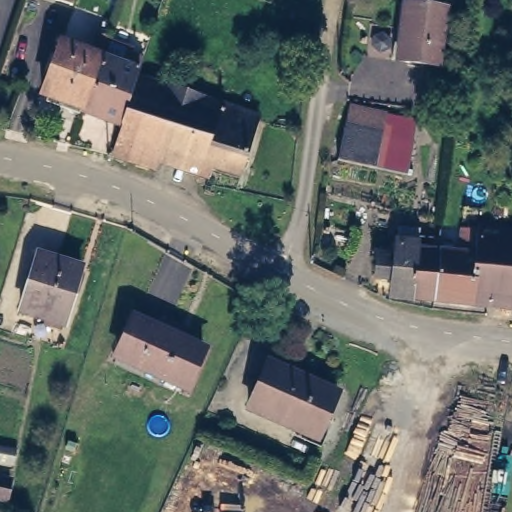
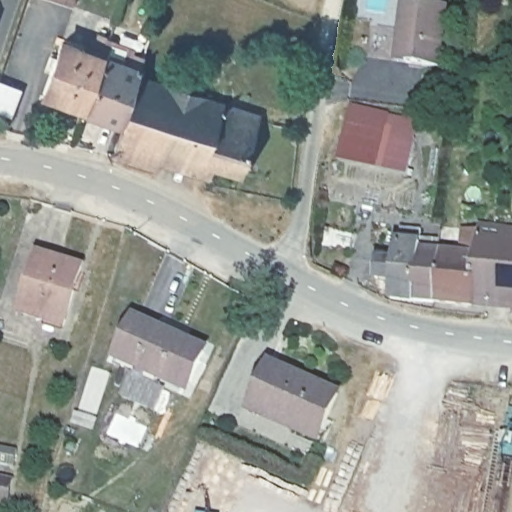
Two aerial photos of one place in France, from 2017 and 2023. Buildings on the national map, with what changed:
unchanged [(73,3),(71,3),(63,0),(74,0),(74,1),(73,3)]
unchanged [(404,31),(396,30),(400,1),(408,3),(410,3),(448,8),(451,8),(450,10),(442,64),(442,66),(440,66),(418,62),(416,62),(400,60),(404,31)]
unchanged [(35,101),(52,51),(53,50),(55,51),(130,76),(132,76),(131,78),(115,127),(115,129),(112,129),(37,104),(35,104),(35,101)]
unchanged [(111,159),(136,84),(136,81),(138,82),(165,91),(167,93),(167,91),(176,66),(177,64),(178,65),(205,73),(207,74),(206,76),(198,101),(197,103),(199,104),(255,121),(257,122),(257,124),(238,180),(237,181),(236,181),(159,157),(157,156),(156,159),(151,173),(150,175),(149,174),(112,161),(110,161),(111,159)]
unchanged [(355,109),(418,125),(407,177),(342,162),(355,109)]
unchanged [(414,254),(415,248),(415,247),(417,238),(417,237),(419,237),(430,239),(432,240),(431,241),(430,248),(430,249),(432,250),(437,250),(438,250),(438,249),(445,213),(445,212),(446,213),(461,215),(462,215),(462,216),(460,227),(460,228),(461,228),(512,236),(512,309),(495,307),(493,307),(494,306),(494,302),(495,301),(493,300),(447,295),(446,294),(446,296),(445,305),(445,306),(444,306),(412,305),(411,305),(411,303),(414,254)]
unchanged [(40,251),(81,267),(82,268),(82,270),(60,326),(60,328),(57,327),(19,313),(17,313),(17,311),(37,253),(38,251),(40,251)]
unchanged [(367,268),(367,267),(369,267),(389,269),(390,269),(390,268),(392,252),(392,251),(393,251),(413,253),(414,254),(411,303),(411,305),(409,305),(387,304),(385,304),(385,302),(386,291),(386,290),(385,290),(367,288),(365,287),(366,286),(367,268)]
unchanged [(134,317),(201,349),(202,350),(202,351),(185,389),(184,391),(182,390),(115,360),(112,359),(114,357),(132,318),(132,317),(134,317)]
unchanged [(262,367),(327,393),(329,394),(328,396),(308,437),(307,439),(306,438),(243,411),(242,410),(242,408),(260,368),(261,367),(262,367)]

